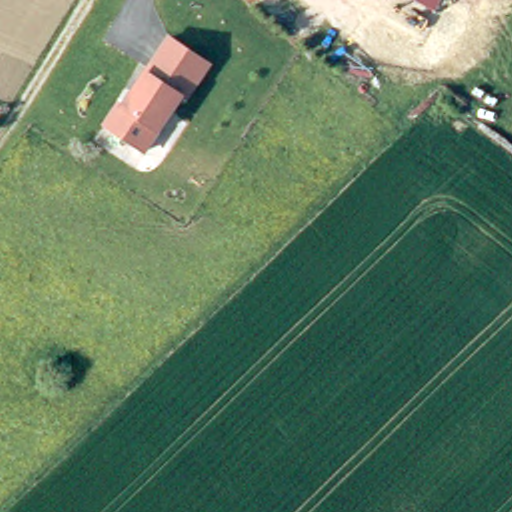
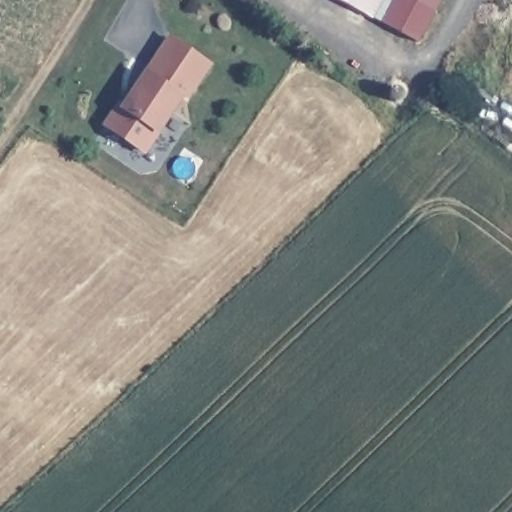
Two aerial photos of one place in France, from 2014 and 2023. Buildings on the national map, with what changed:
new [(416,40),(343,0),(417,0),(434,10),(416,40)]
unchanged [(417,0),(440,0),(434,10),(417,0)]
unchanged [(211,62),(147,155),(100,124),(117,99),(125,104),(169,35),(211,62)]

